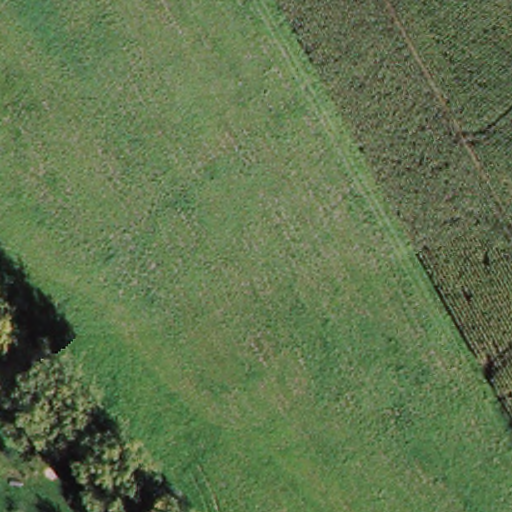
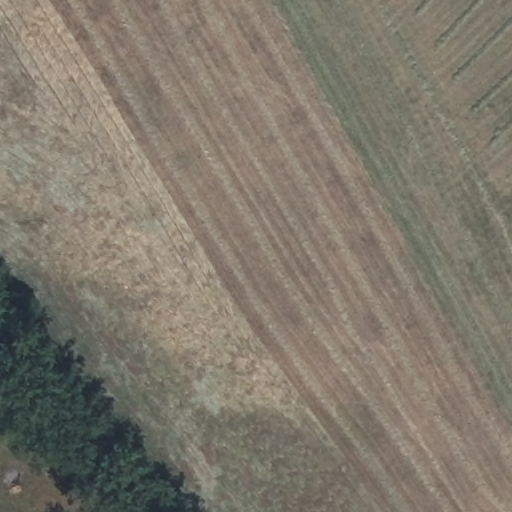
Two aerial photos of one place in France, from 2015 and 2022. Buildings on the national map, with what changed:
[]

